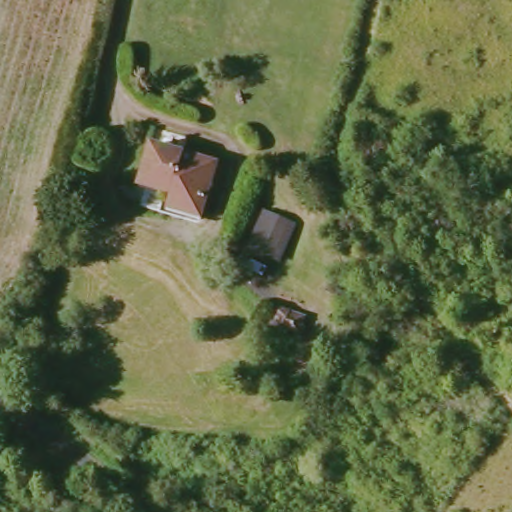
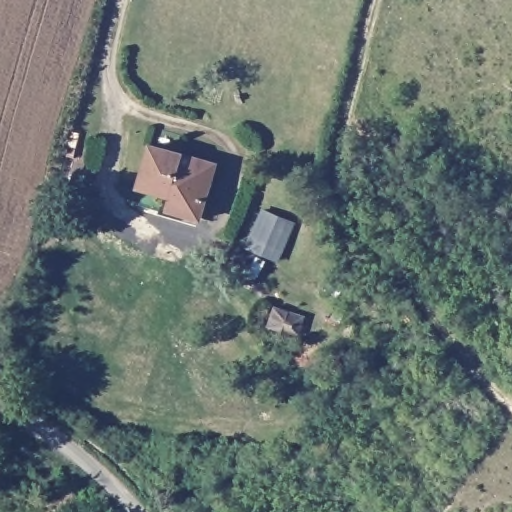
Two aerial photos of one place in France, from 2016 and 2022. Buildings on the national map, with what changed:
unchanged [(215,162),(198,215),(164,204),(162,209),(138,200),(143,183),(137,181),(151,139),(215,162)]
unchanged [(298,226),(281,265),(246,251),(262,211),(298,226)]
unchanged [(294,315),(284,335),(270,328),(280,308),(294,315)]

